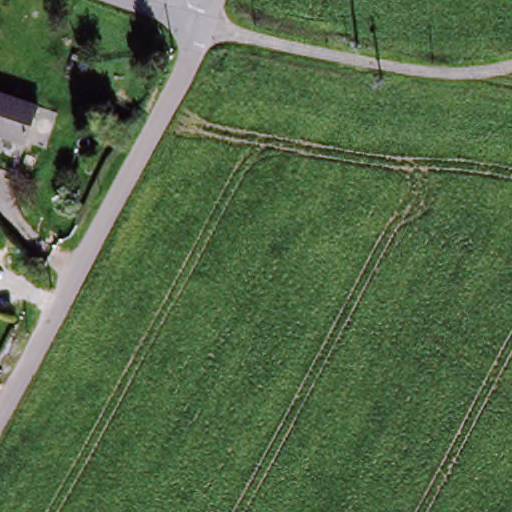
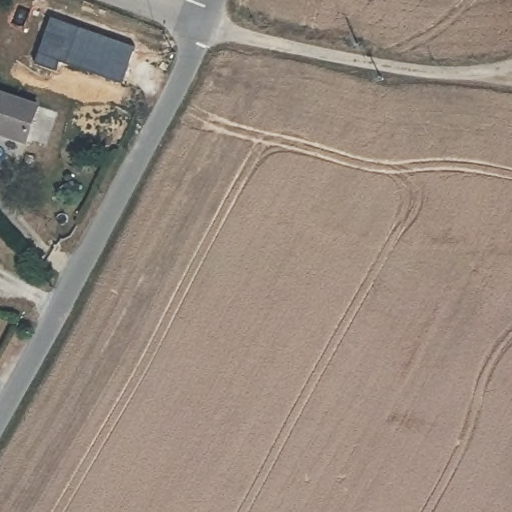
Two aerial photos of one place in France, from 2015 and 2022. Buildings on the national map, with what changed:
new [(50,17),(135,47),(122,84),(60,61),(56,70),(33,64),(50,17)]
unchanged [(22,146),(0,137),(0,95),(36,110),(22,146)]
unchanged [(127,117),(115,142),(97,132),(110,108),(127,117)]

